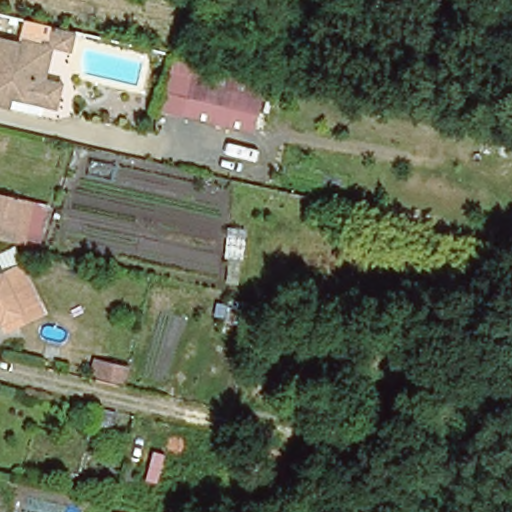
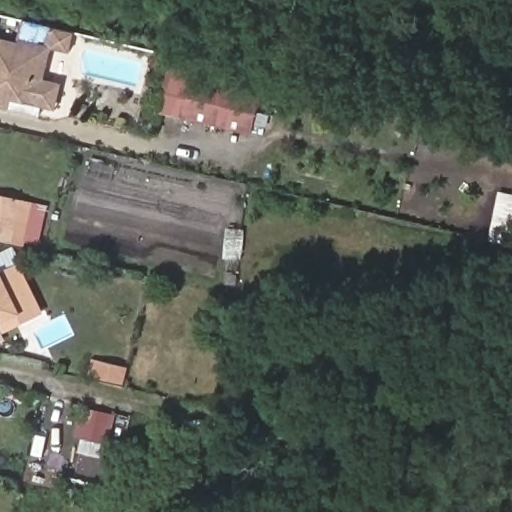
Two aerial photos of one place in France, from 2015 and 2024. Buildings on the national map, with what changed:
unchanged [(70,52),(54,51),(49,80),(64,83),(59,110),(12,101),(11,109),(0,107),(0,38),(48,44),(52,28),(76,32),(70,52)]
unchanged [(267,102),(193,86),(185,122),(162,117),(175,63),(270,84),(267,102)]
unchanged [(185,122),(193,86),(267,102),(260,138),(185,122)]
unchanged [(30,242),(0,235),(0,194),(39,203),(30,242)]
unchanged [(10,269),(25,298),(33,313),(20,319),(8,326),(0,330),(0,274),(10,269)]
unchanged [(95,376),(101,355),(135,364),(131,384),(95,376)]

